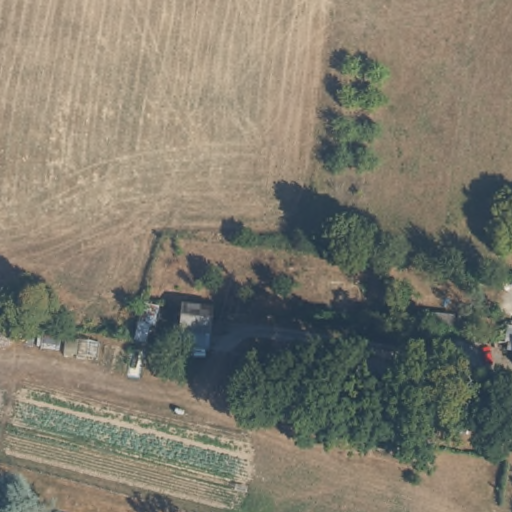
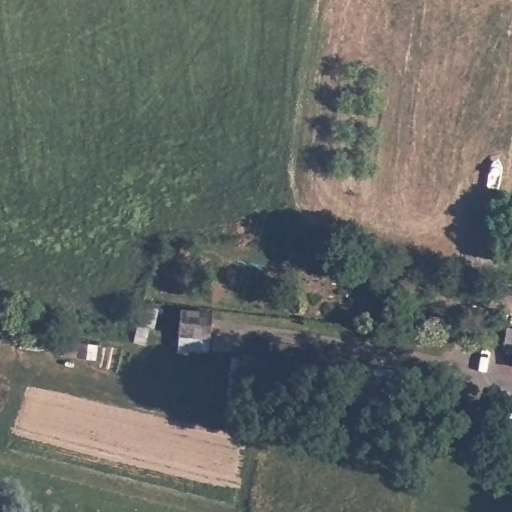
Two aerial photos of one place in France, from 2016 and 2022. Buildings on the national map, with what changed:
unchanged [(211,309),(207,331),(180,327),(181,305),(211,309)]
unchanged [(307,322),(305,343),(280,341),(283,320),(307,322)]
unchanged [(362,400),(363,385),(353,384),(337,382),(341,362),(355,364),(387,370),(385,389),(382,407),(362,400)]

